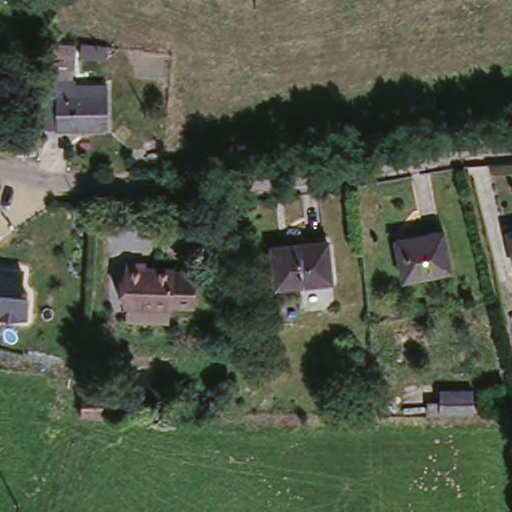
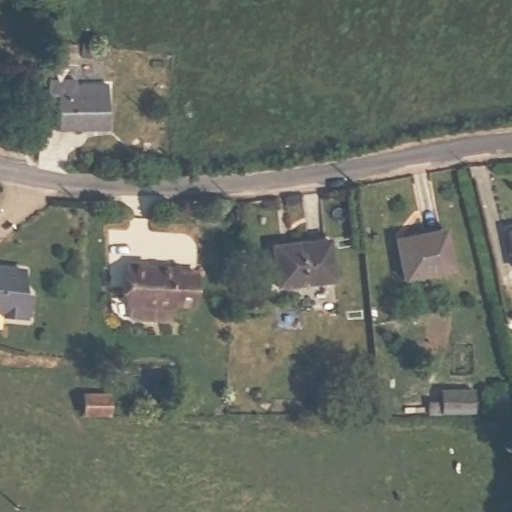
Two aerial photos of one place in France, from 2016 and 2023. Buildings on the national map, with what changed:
unchanged [(56,95),(50,94),(50,77),(110,80),(107,132),(55,129),(56,95)]
unchanged [(512,255),(507,230),(512,229),(512,255)]
unchanged [(442,231),(447,273),(400,279),(395,237),(442,231)]
unchanged [(270,240),(333,237),(336,284),(273,288),(270,240)]
unchanged [(24,269),(22,289),(29,290),(25,321),(0,318),(0,312),(0,266),(24,269)]
unchanged [(130,336),(129,319),(125,320),(121,271),(136,269),(137,275),(166,271),(167,277),(189,274),(191,307),(173,309),(173,314),(172,332),(130,336)]
unchanged [(468,392),(471,411),(440,414),(437,395),(468,392)]
unchanged [(139,402),(142,418),(120,421),(116,404),(139,402)]

